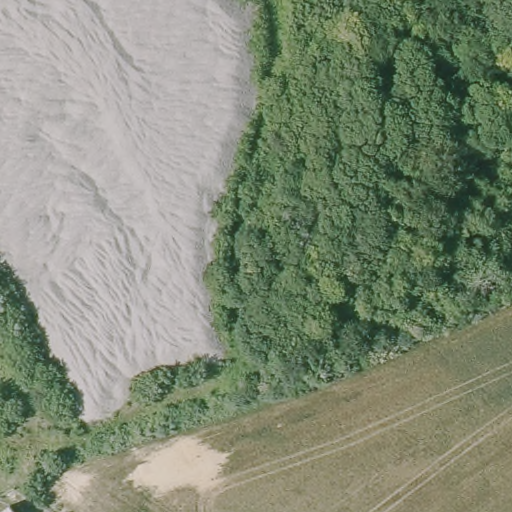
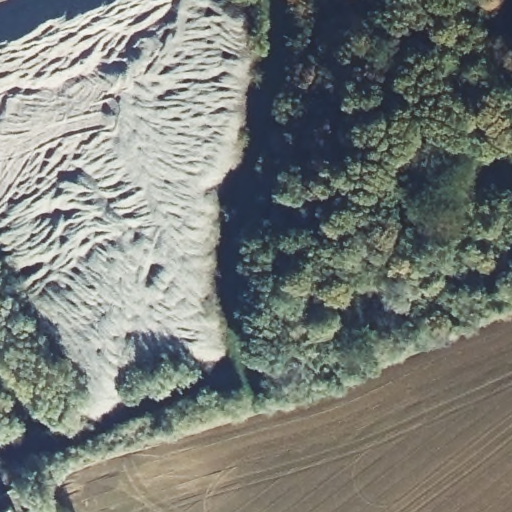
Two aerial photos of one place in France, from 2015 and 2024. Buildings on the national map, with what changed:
unchanged [(0,511),(15,502),(22,512),(0,512),(0,511)]

